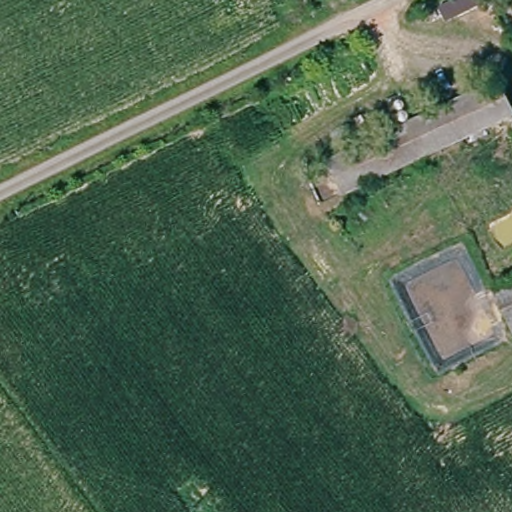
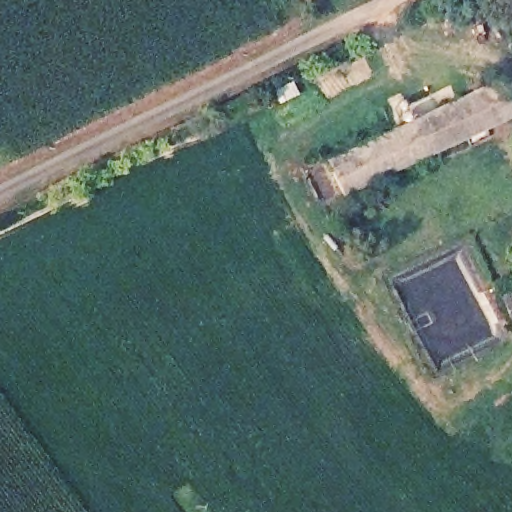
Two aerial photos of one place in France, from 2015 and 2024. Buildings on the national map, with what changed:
unchanged [(396,169),(343,197),(327,166),(380,138),(495,75),(512,106),(512,109),(396,169)]
unchanged [(495,285),(512,276),(512,315),(495,285)]

